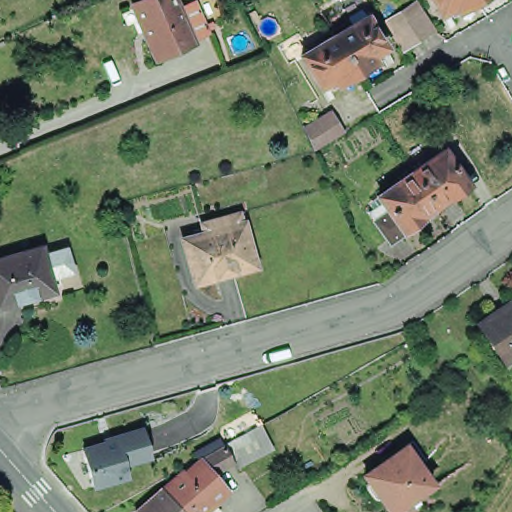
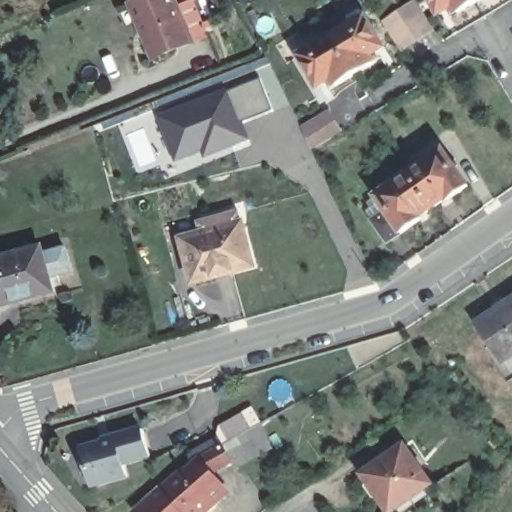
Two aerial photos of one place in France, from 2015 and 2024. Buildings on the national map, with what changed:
unchanged [(185,5),(205,32),(160,66),(126,22),(154,0),(162,0),(172,14),(185,5)]
unchanged [(407,42),(390,16),(405,7),(415,0),(431,26),(420,34),(407,42)]
unchanged [(438,7),(433,0),(450,0),(438,7)]
unchanged [(455,6),(452,0),(466,0),(455,6)]
unchanged [(368,10),(387,41),(374,50),(377,56),(360,67),(336,29),(368,10)]
unchanged [(360,67),(340,80),(335,72),(322,81),(303,49),(336,29),(360,67)]
new [(172,163),(155,116),(225,89),(226,91),(256,79),(271,112),(240,122),(247,141),(201,159),(200,152),(172,163)]
unchanged [(327,113),(340,132),(310,150),(300,129),(327,113)]
unchanged [(451,145),(476,181),(458,194),(456,192),(441,202),(418,168),(451,145)]
unchanged [(375,207),(371,202),(385,192),(418,168),(441,202),(427,212),(429,215),(411,228),(410,227),(395,237),(375,207)]
unchanged [(341,179),(352,202),(338,209),(327,185),(341,179)]
unchanged [(197,282),(185,239),(205,232),(203,222),(241,212),(245,222),(246,222),(258,266),(197,282)]
unchanged [(0,314),(0,266),(33,257),(35,263),(58,257),(65,282),(52,286),(50,282),(41,285),(46,301),(0,314)]
unchanged [(478,318),(512,296),(512,349),(503,355),(478,318)]
unchanged [(159,482),(180,464),(182,466),(196,455),(195,453),(221,440),(220,438),(245,427),(250,423),(255,433),(249,436),(225,447),(229,455),(207,466),(224,485),(194,512),(137,512),(132,507),(159,482)]
unchanged [(102,441),(102,437),(142,427),(151,457),(126,465),(127,476),(91,488),(82,446),(102,441)]
demolished [(186,445),(171,453),(166,443),(181,435),(186,445)]
unchanged [(407,443),(435,482),(393,512),(383,497),(376,496),(368,485),(370,478),(365,472),(407,443)]

